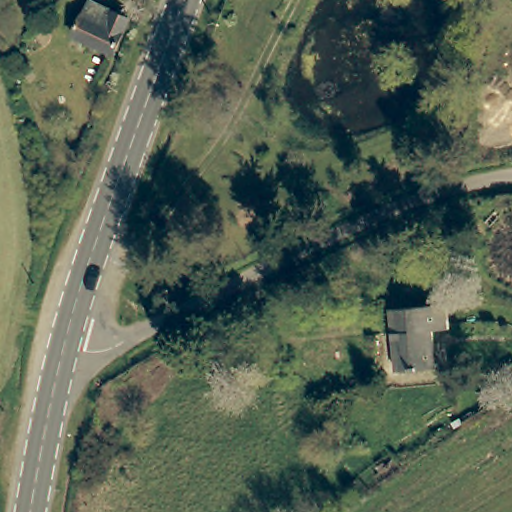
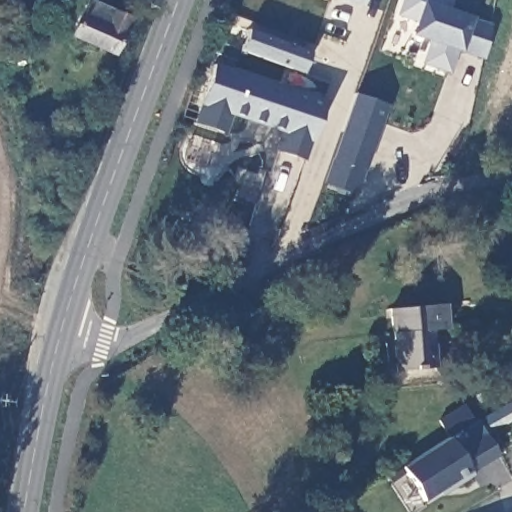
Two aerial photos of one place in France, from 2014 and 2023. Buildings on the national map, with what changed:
new [(362,5),(347,0),(363,0),(362,5)]
new [(401,0),(447,0),(444,10),(467,17),(457,46),(454,46),(447,69),(423,60),(430,37),(411,31),(416,19),(397,12),(401,0)]
unchanged [(130,20),(113,53),(73,34),(89,1),(130,20)]
new [(254,31),(304,49),(295,70),(246,52),(254,31)]
new [(203,97),(203,96),(216,57),(325,96),(306,154),(277,144),(284,125),(233,107),(226,126),(197,115),(203,97)]
new [(354,91),(387,102),(374,140),(342,129),(354,91)]
new [(342,129),(374,140),(356,192),(324,181),(342,129)]
unchanged [(447,328),(432,330),(435,367),(395,370),(389,309),(444,303),(447,328)]
unchanged [(489,434),(479,419),(512,400),(512,421),(489,434)]
new [(448,438),(458,453),(486,434),(499,456),(472,476),(424,505),(401,468),(448,438)]

